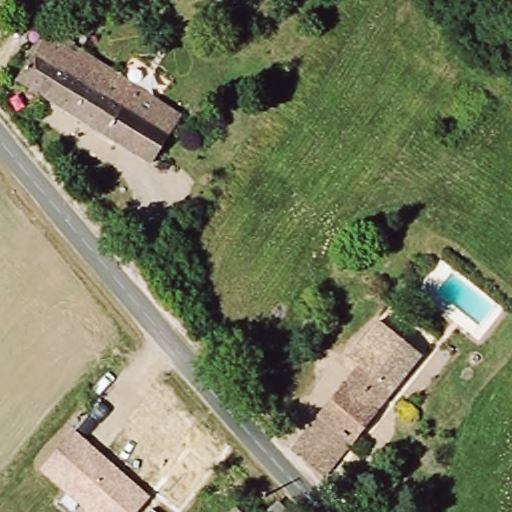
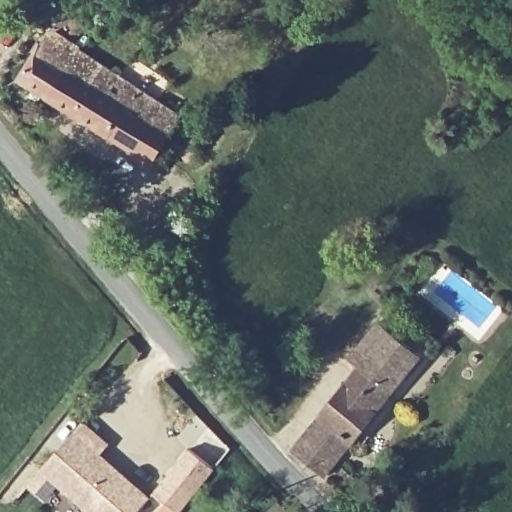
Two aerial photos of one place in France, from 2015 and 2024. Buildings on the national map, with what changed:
unchanged [(72,60),(46,103),(15,85),(41,42),(72,60)]
unchanged [(177,119),(150,168),(46,103),(72,60),(77,54),(177,119)]
unchanged [(292,452),(315,424),(359,368),(350,359),(380,324),(421,362),(366,429),(321,483),(292,452)]
unchanged [(40,469),(74,429),(151,494),(136,512),(88,512),(40,469)]
new [(154,492),(189,447),(215,469),(180,512),(177,512),(154,492)]
new [(280,501),(288,512),(266,512),(280,501)]
new [(239,507),(243,512),(233,512),(239,507)]
demolished [(280,507),(284,512),(272,512),(280,507)]

